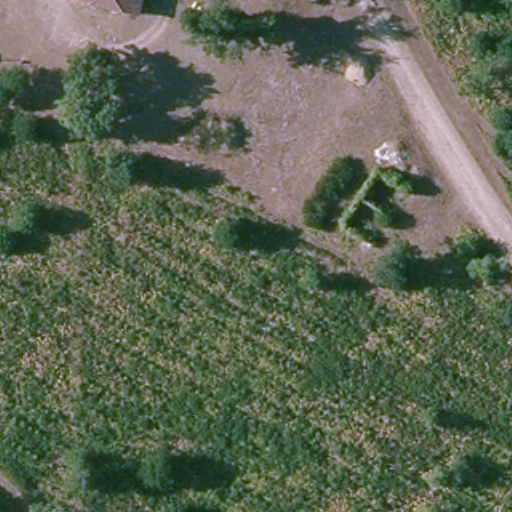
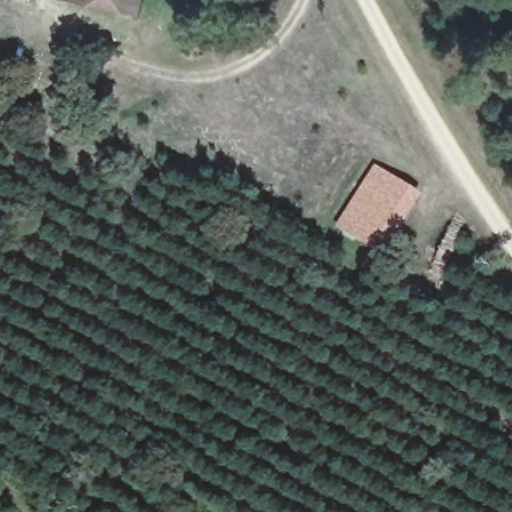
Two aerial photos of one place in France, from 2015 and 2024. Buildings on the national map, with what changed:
unchanged [(129,15),(58,0),(133,0),(129,15)]
new [(421,195),(379,254),(335,227),(375,166),(421,195)]

